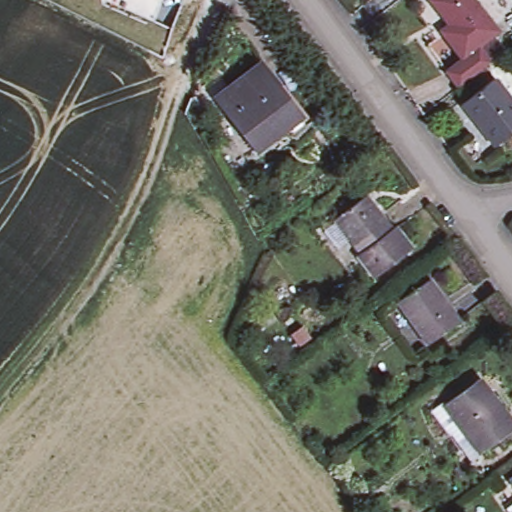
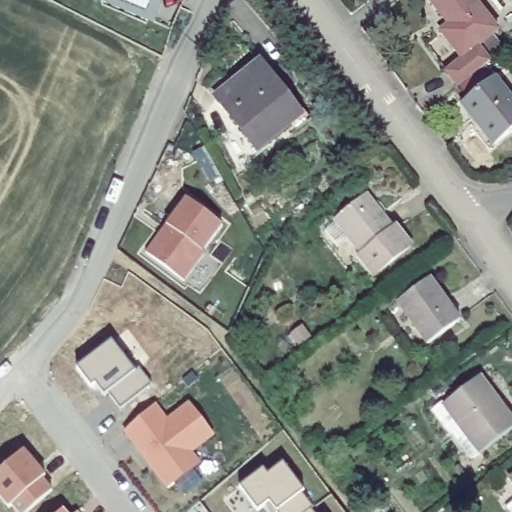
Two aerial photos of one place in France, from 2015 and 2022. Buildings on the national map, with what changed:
unchanged [(465,61),(442,33),(452,25),(447,18),(445,20),(431,0),(474,0),(500,34),(480,49),(492,65),(462,89),(449,73),(465,61)]
unchanged [(285,135),(280,127),(251,148),(212,93),(256,62),(295,116),(302,124),(285,135)]
unchanged [(494,77),(512,101),(512,130),(494,144),(462,102),(494,77)]
unchanged [(334,220),(365,197),(392,234),(360,257),(334,220)]
new [(222,226),(202,251),(206,253),(185,282),(147,252),(167,224),(187,198),(222,226)]
unchanged [(360,257),(392,234),(394,232),(408,251),(371,278),(357,259),(360,257)]
unchanged [(429,277),(459,319),(426,343),(396,301),(429,277)]
new [(120,407),(109,391),(105,395),(95,382),(91,386),(79,369),(112,344),(135,374),(140,369),(151,384),(120,407)]
unchanged [(462,450),(449,432),(444,429),(429,409),(444,403),(477,379),(512,427),(512,428),(479,452),(469,459),(462,450)]
new [(215,437),(192,453),(201,464),(167,489),(123,432),(157,405),(167,419),(189,403),(215,437)]
new [(42,478),(53,490),(25,512),(19,512),(12,504),(10,507),(0,496),(0,471),(24,450),(47,476),(42,478)]
new [(267,472),(284,461),(318,512),(279,512),(270,498),(258,506),(240,484),(262,466),(267,472)]
unchanged [(512,475),(512,483),(508,478),(512,475)]
unchanged [(510,512),(504,503),(512,498),(512,512),(510,512)]

